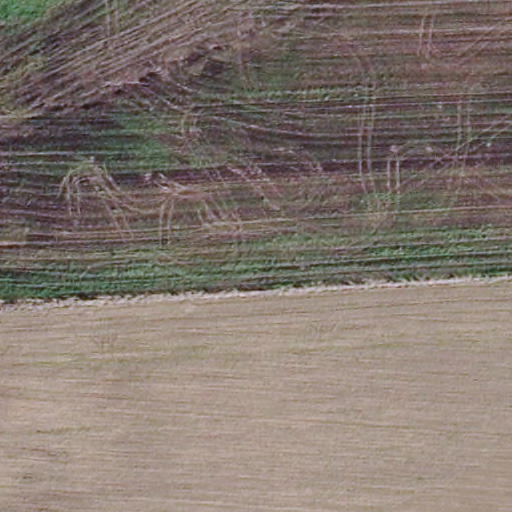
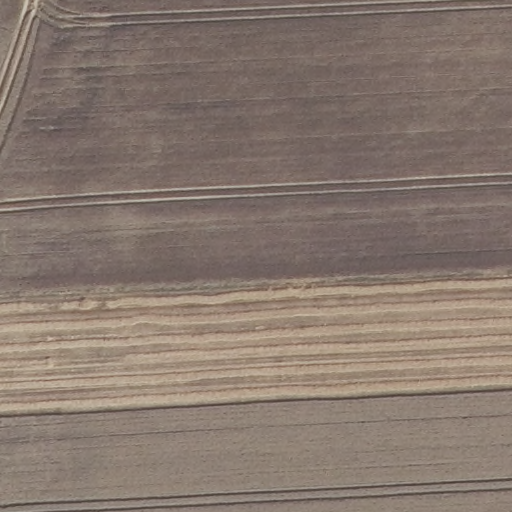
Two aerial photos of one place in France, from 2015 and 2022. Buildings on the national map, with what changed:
[]

